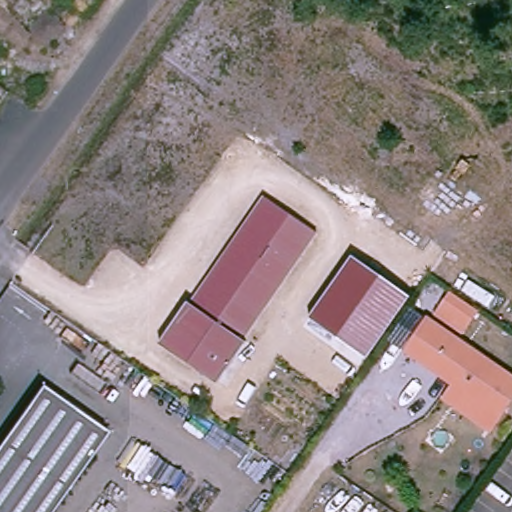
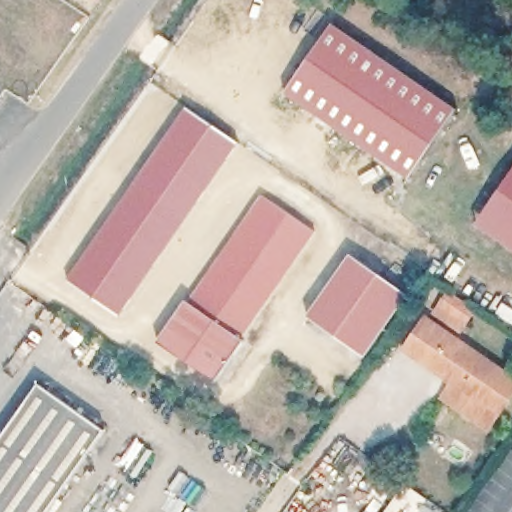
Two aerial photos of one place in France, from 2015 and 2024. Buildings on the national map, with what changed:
new [(286,93),(333,25),(456,110),(408,178),(286,93)]
new [(186,105),(240,143),(189,214),(120,316),(66,277),(186,105)]
new [(512,169),(512,250),(475,224),(512,169)]
unchanged [(182,297),(185,299),(259,192),(279,206),(311,228),(237,335),(240,337),(212,377),(176,352),(155,338),(182,297)]
unchanged [(397,349),(383,338),(371,358),(311,317),(354,256),(413,297),(409,305),(425,313),(397,349)]
unchanged [(477,310),(464,333),(435,315),(451,292),(477,310)]
unchanged [(437,397),(445,384),(397,349),(425,313),(512,370),(512,394),(487,432),(437,397)]
unchanged [(102,431),(61,491),(46,512),(0,512),(0,434),(34,385),(102,431)]

